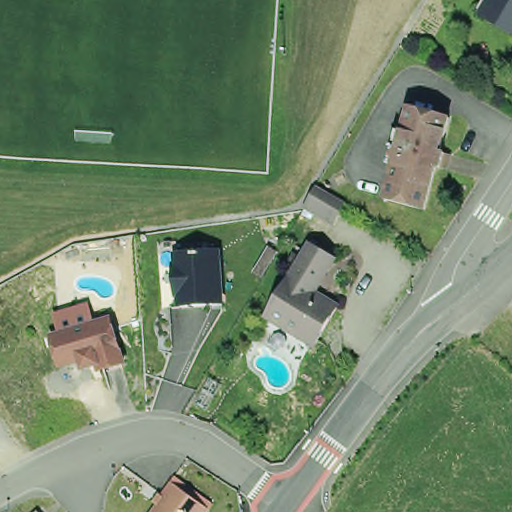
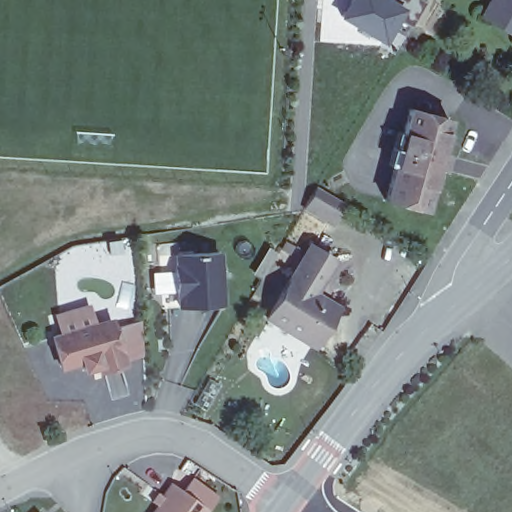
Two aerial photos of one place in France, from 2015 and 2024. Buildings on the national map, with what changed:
new [(345,0),(408,0),(382,41),(337,13),(345,0)]
unchanged [(508,0),(512,0),(512,23),(498,15),(508,0)]
unchanged [(382,194),(406,102),(445,113),(436,147),(441,148),(437,163),(432,161),(421,204),(382,194)]
unchanged [(305,211),(308,206),(313,198),(318,189),(344,204),(339,213),(332,226),(305,211)]
unchanged [(262,315),(307,243),(331,259),(311,292),(334,306),(310,344),(262,315)]
unchanged [(180,294),(176,291),(175,269),(178,266),(177,254),(219,251),(220,268),(222,304),(200,305),(180,306),(180,294)]
unchanged [(62,329),(86,322),(112,315),(125,358),(102,365),(100,360),(85,365),(82,355),(62,361),(53,332),(62,329)]
unchanged [(162,495),(172,482),(209,509),(207,512),(154,512),(165,496),(162,495)]

